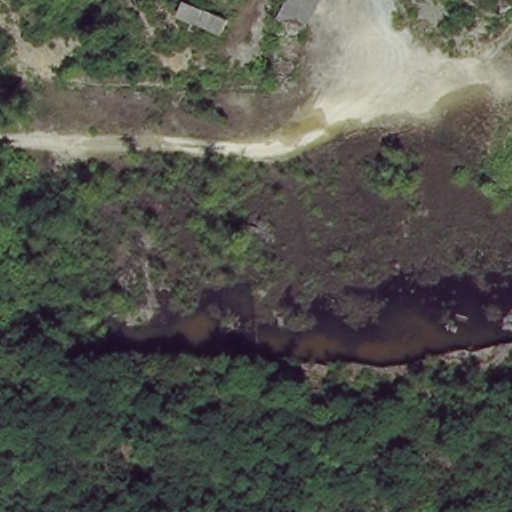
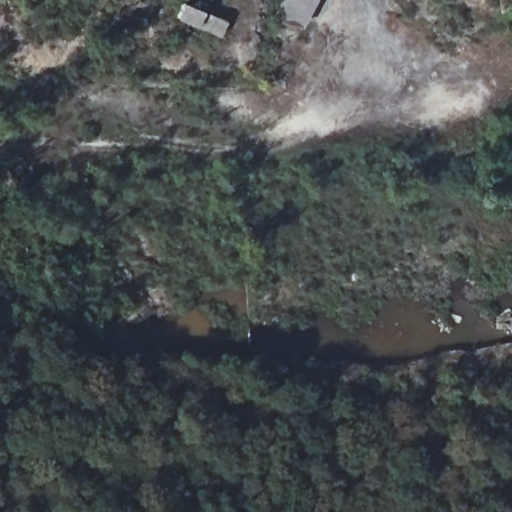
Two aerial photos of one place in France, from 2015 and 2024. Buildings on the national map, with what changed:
unchanged [(177,17),(184,0),(187,0),(231,14),(218,29),(177,17)]
unchanged [(292,50),(269,39),(288,0),(294,0),(313,10),(292,50)]
unchanged [(313,10),(294,0),(317,0),(313,10)]

